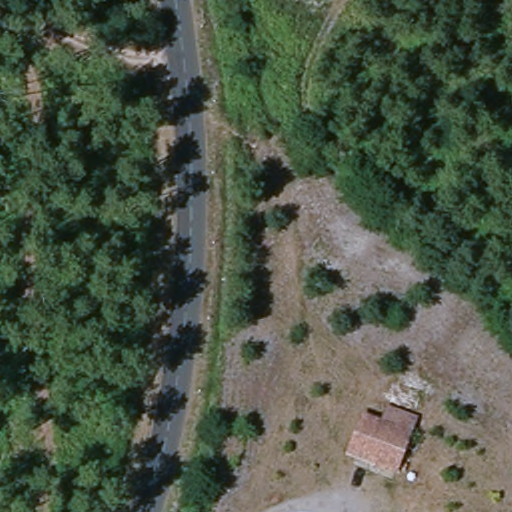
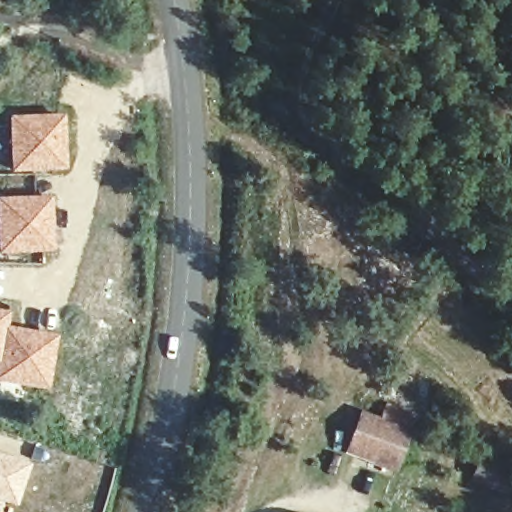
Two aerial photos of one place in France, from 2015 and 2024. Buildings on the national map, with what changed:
new [(66,114),(66,171),(10,173),(8,115),(66,114)]
new [(55,195),(56,252),(0,255),(0,196),(55,195)]
new [(11,311),(8,325),(0,353),(0,309),(11,311)]
new [(8,325),(60,335),(48,392),(0,383),(0,353),(8,325)]
unchanged [(350,448),(362,411),(410,427),(399,465),(350,448)]
new [(34,461),(19,510),(0,503),(0,449),(34,461)]

